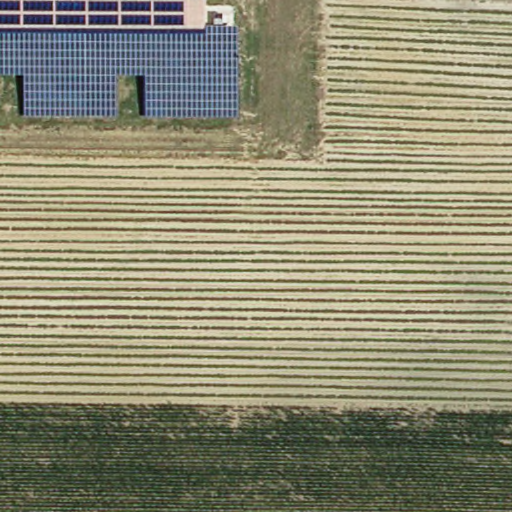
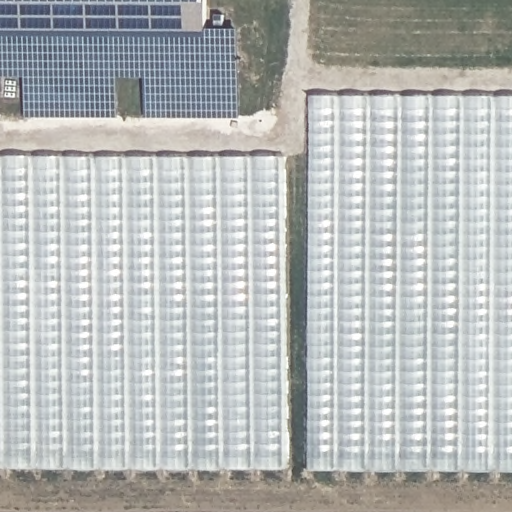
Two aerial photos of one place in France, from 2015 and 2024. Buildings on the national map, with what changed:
unchanged [(147,80),(118,80),(118,121),(26,120),(25,82),(0,82),(0,0),(208,0),(208,27),(238,27),(237,121),(147,121),(147,80)]
new [(311,95),(512,96),(512,472),(311,471),(311,95)]
new [(289,470),(0,469),(0,155),(289,156),(289,470)]

